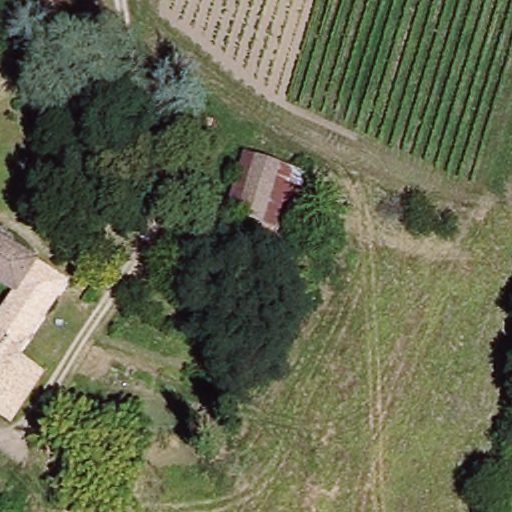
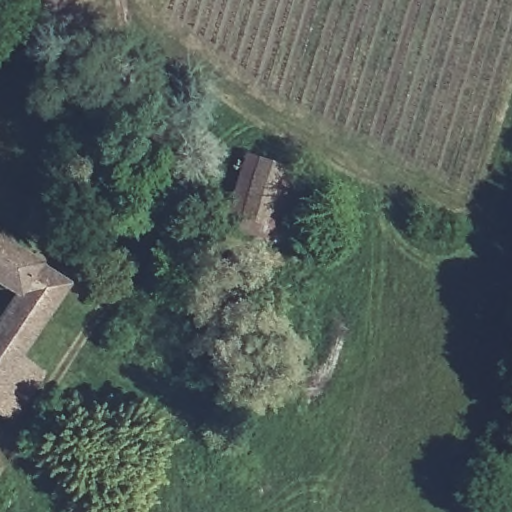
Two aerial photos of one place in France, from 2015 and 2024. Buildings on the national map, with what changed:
unchanged [(259,240),(267,203),(262,225),(225,214),(243,152),(271,159),(307,171),(292,212),(282,246),(259,240)]
unchanged [(18,357),(46,373),(15,425),(0,417),(0,310),(11,291),(0,285),(0,228),(71,272),(18,357)]
unchanged [(204,259),(187,254),(194,233),(211,239),(204,259)]
unchanged [(169,267),(164,284),(140,277),(145,259),(169,267)]

